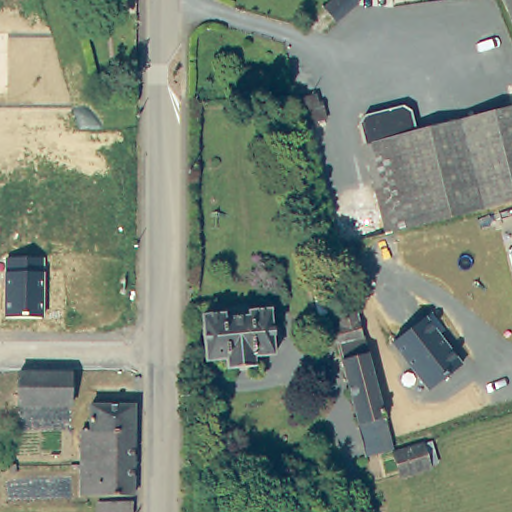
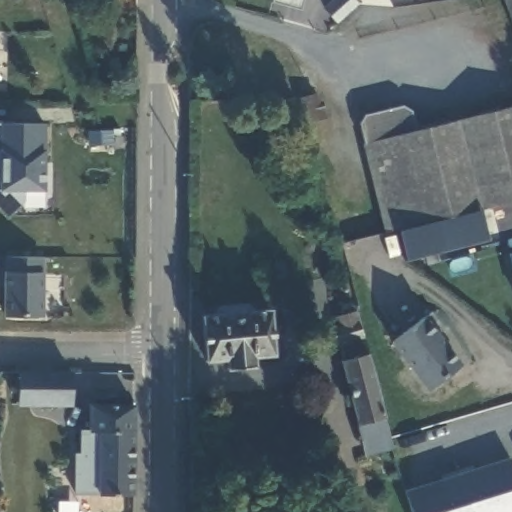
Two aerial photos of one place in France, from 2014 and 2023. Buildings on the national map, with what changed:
new [(303,0),(301,10),(271,2),(271,0),(303,0)]
unchanged [(340,24),(327,10),(339,0),(361,0),(362,5),(340,24)]
unchanged [(512,0),(512,14),(507,0),(512,0)]
new [(358,123),(367,115),(403,105),(412,111),(416,130),(363,143),(358,123)]
unchanged [(385,230),(363,143),(512,106),(512,199),(481,207),(385,230)]
new [(23,192),(22,204),(8,218),(0,209),(0,123),(46,125),(46,192),(23,192)]
unchanged [(512,264),(510,255),(512,254),(512,264)]
unchanged [(5,272),(5,258),(44,258),(44,273),(43,318),(4,317),(5,272)]
unchanged [(276,356),(256,358),(257,367),(229,368),(228,360),(208,361),(205,317),(226,316),(226,320),(252,318),(252,313),(272,311),(276,356)]
unchanged [(394,447),(369,456),(364,437),(360,423),(334,331),(343,328),(341,318),(358,313),(386,416),(392,438),(394,447)]
unchanged [(427,390),(392,345),(431,313),(442,330),(437,335),(462,366),(427,390)]
unchanged [(70,401),(18,402),(17,371),(45,370),(70,369),(70,401)]
unchanged [(132,492),(81,491),(81,428),(90,428),(90,403),(133,402),(132,492)]
demolished [(438,461),(402,471),(396,450),(431,440),(438,461)]
new [(406,490),(510,457),(512,463),(512,512),(413,512),(406,490)]
unchanged [(17,469),(10,471),(8,463),(15,461),(17,469)]
unchanged [(132,512),(107,512),(106,498),(132,499),(132,512)]

